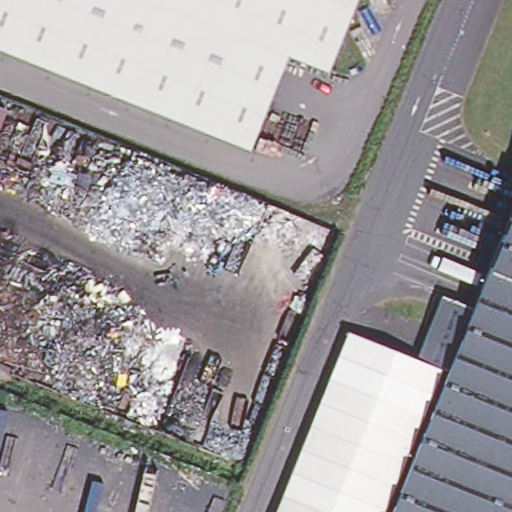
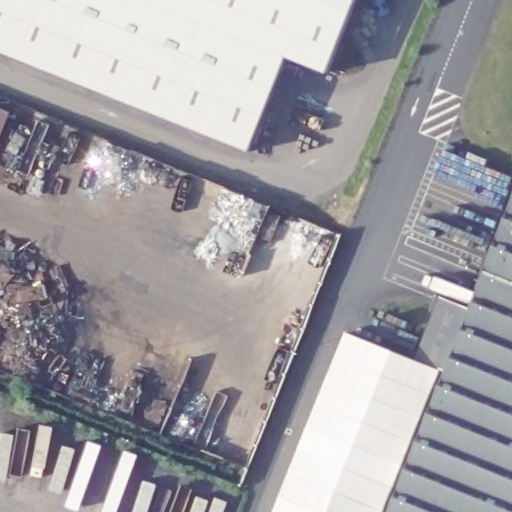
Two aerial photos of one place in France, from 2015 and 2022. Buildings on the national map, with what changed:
unchanged [(326,72),(286,57),(248,151),(0,50),(0,0),(355,0),(326,72)]
unchanged [(394,512),(473,312),(512,216),(512,512),(394,512)]
unchanged [(277,512),(348,332),(446,371),(391,512),(277,512)]

